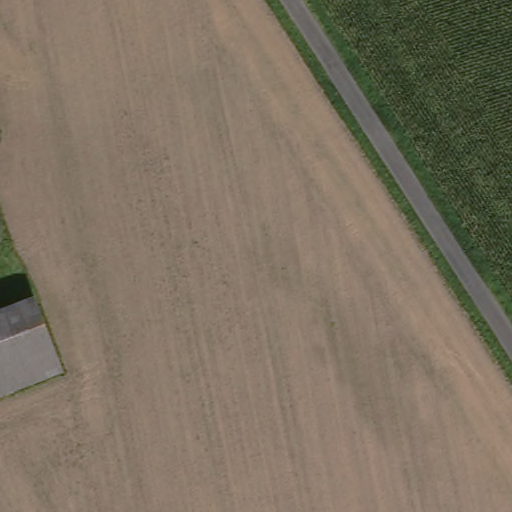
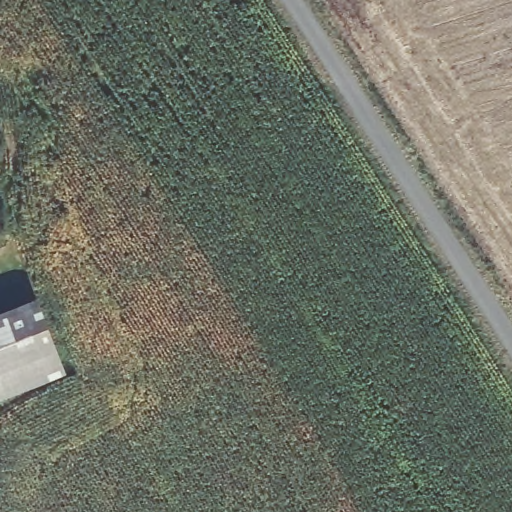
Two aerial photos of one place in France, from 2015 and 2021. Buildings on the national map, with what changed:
unchanged [(60,376),(0,399),(0,323),(34,311),(60,376)]

